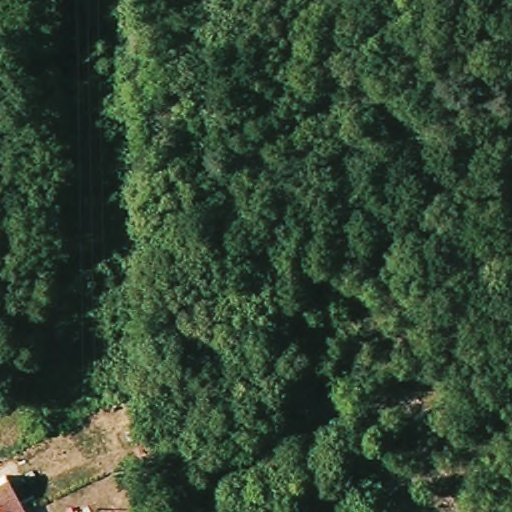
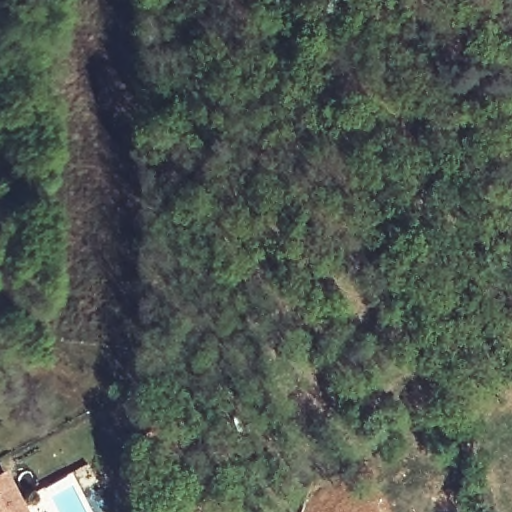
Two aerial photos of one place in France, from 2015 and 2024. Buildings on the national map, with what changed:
unchanged [(8,471),(29,512),(0,512),(0,475),(8,471)]

